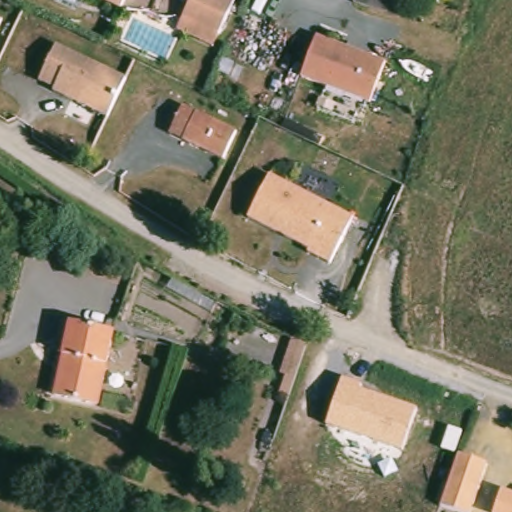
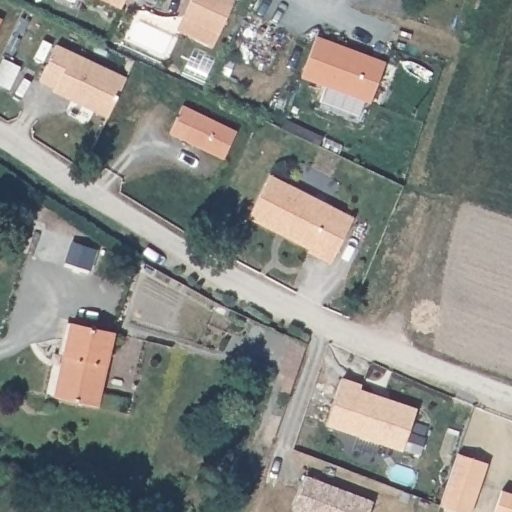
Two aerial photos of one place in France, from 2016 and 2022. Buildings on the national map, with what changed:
unchanged [(121,5),(109,0),(124,0),(121,5)]
unchanged [(182,24),(188,9),(192,0),(236,0),(224,26),(218,40),(182,24)]
unchanged [(362,0),(413,0),(419,2),(412,24),(360,8),(362,0)]
unchanged [(3,19),(0,26),(0,18),(3,19)]
unchanged [(371,104),(302,78),(318,37),(345,47),(371,58),(387,64),(371,104)]
unchanged [(124,79),(106,120),(51,95),(52,90),(38,83),(53,46),(124,79)]
unchanged [(238,135),(224,163),(169,137),(182,110),(238,135)]
unchanged [(355,213),(331,259),(309,248),(311,244),(249,213),(271,170),(355,213)]
unchanged [(114,338),(97,409),(54,399),(71,328),(114,338)]
unchanged [(295,386),(280,381),(298,328),(312,335),(295,386)]
unchanged [(402,450),(327,425),(341,379),(363,385),(361,391),(417,410),(402,450)]
unchanged [(486,465),(469,512),(455,512),(439,506),(457,455),(486,465)]
new [(373,502),(369,512),(297,512),(293,510),(307,476),(373,502)]
unchanged [(512,495),(512,512),(494,512),(502,491),(512,495)]

